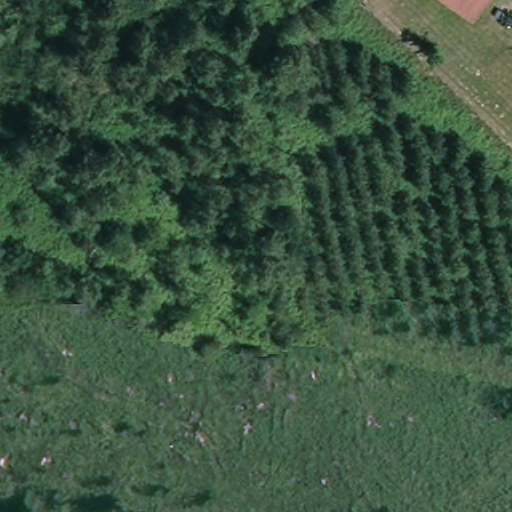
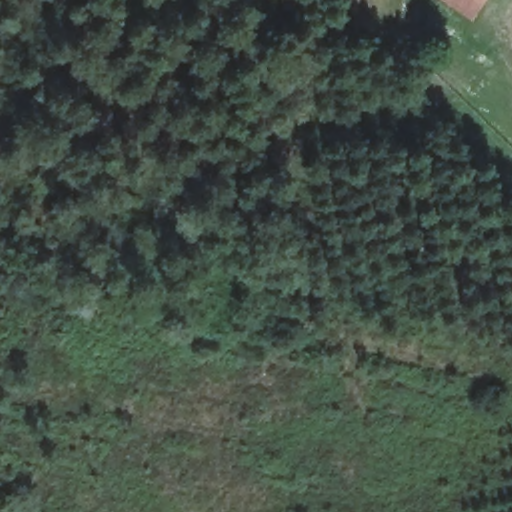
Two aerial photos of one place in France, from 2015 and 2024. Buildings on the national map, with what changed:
unchanged [(471,15),(448,0),(481,0),(471,15)]

